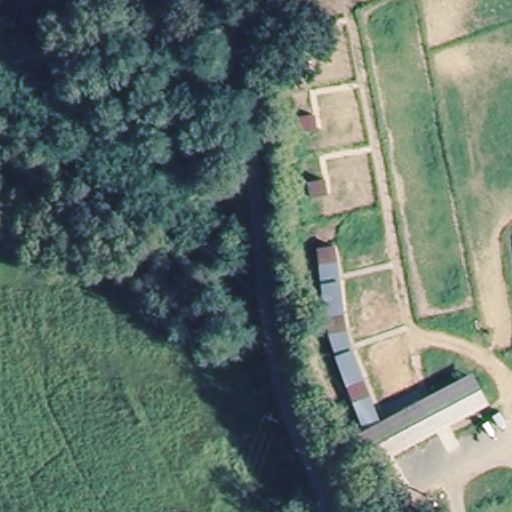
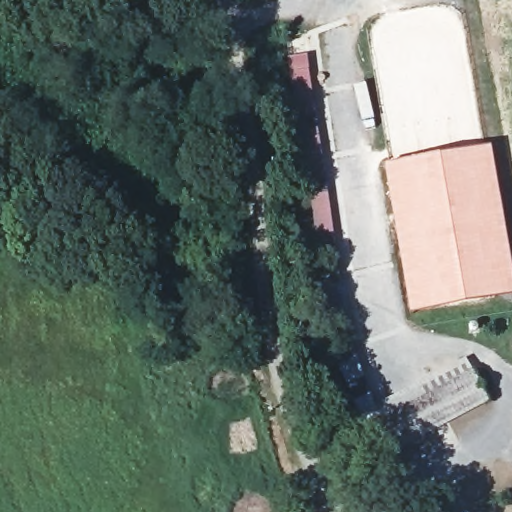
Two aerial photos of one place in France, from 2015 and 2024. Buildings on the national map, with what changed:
new [(306,53),(312,92),(303,93),(303,104),(310,103),(319,161),(304,160),(299,159),(293,134),(290,94),(284,58),(306,53)]
new [(434,155),(490,146),(512,271),(512,295),(409,313),(384,167),(434,155)]
new [(317,186),(317,189),(326,188),(334,241),(314,244),(303,188),(317,186)]
new [(340,326),(333,297),(325,297),(325,280),(344,279),(347,326),(340,326)]
unchanged [(486,404),(436,430),(422,403),(472,377),(486,404)]
unchanged [(363,433),(377,426),(422,403),(436,430),(391,453),(376,461),(363,433)]

